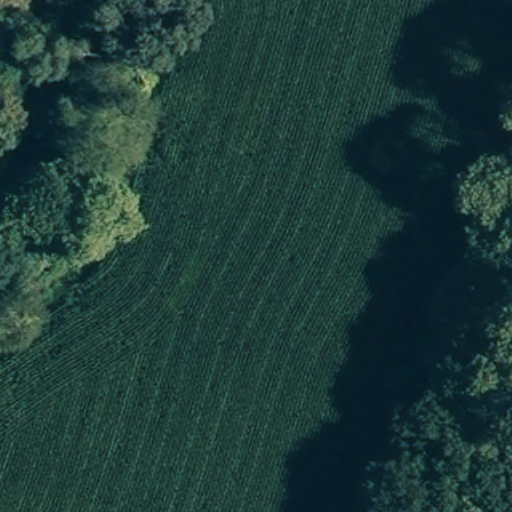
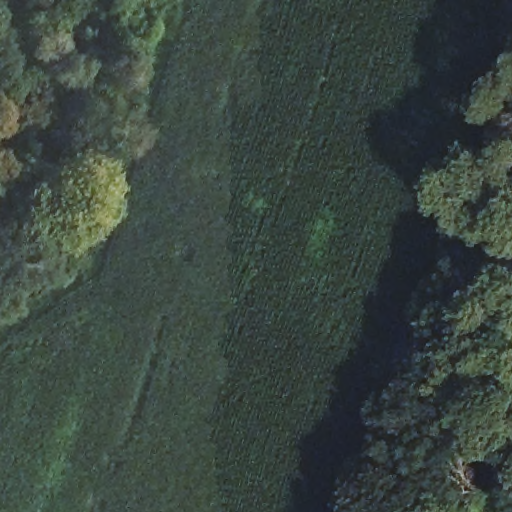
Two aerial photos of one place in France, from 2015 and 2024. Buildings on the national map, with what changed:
[]

